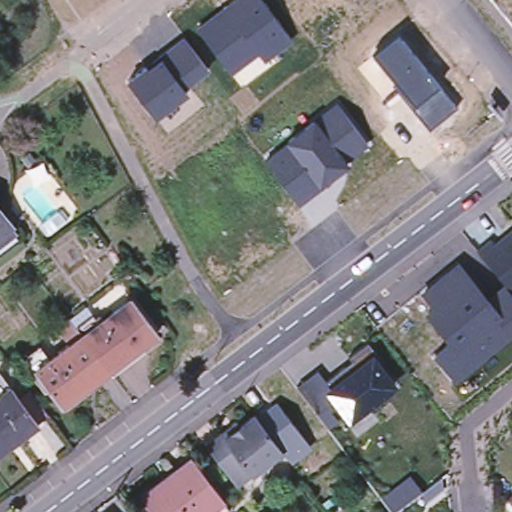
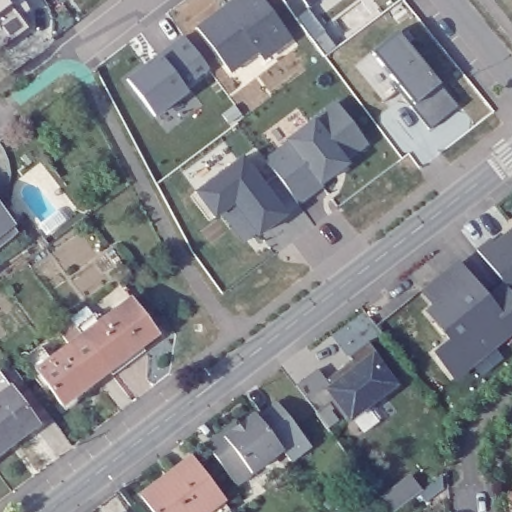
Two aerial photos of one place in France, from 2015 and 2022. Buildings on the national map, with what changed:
new [(32,10),(21,17),(13,5),(0,14),(0,0),(27,0),(32,10)]
unchanged [(295,38),(265,60),(259,52),(230,74),(194,25),(227,0),(267,0),(295,38)]
new [(282,0),(320,0),(308,9),(295,17),(282,0)]
unchanged [(459,105),(431,129),(369,53),(399,30),(459,105)]
unchanged [(208,70),(184,88),(189,94),(154,121),(125,81),(149,64),(147,60),(184,34),(208,70)]
unchanged [(371,143),(346,162),(349,166),(299,205),(264,159),(284,143),(281,141),(337,100),(371,143)]
new [(245,156),(289,217),(259,239),(237,205),(217,219),(197,193),(245,156)]
unchanged [(11,224),(0,233),(0,210),(11,224)]
unchanged [(420,295),(457,266),(479,292),(499,282),(472,250),(488,238),(492,242),(512,226),(512,292),(510,294),(512,297),(512,339),(506,337),(456,378),(430,354),(445,343),(422,314),(429,310),(420,295)]
unchanged [(38,375),(64,356),(62,353),(71,346),(61,332),(72,323),(85,340),(135,304),(161,339),(112,376),(65,411),(38,375)]
unchanged [(317,372),(327,381),(365,351),(394,386),(350,423),(330,401),(317,411),(297,388),(317,372)]
unchanged [(40,428),(0,458),(0,375),(13,392),(14,392),(40,428)]
unchanged [(281,450),(240,482),(235,485),(228,476),(205,446),(219,436),(222,432),(227,429),(234,424),(237,428),(253,414),(281,450)]
unchanged [(178,467),(181,471),(197,459),(225,496),(223,497),(231,507),(225,512),(203,512),(159,512),(145,492),(178,467)]

